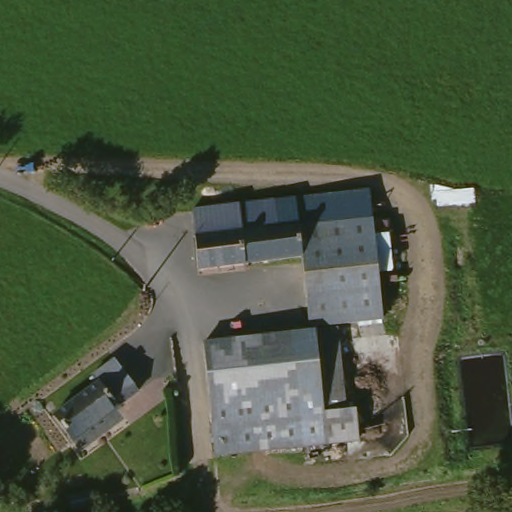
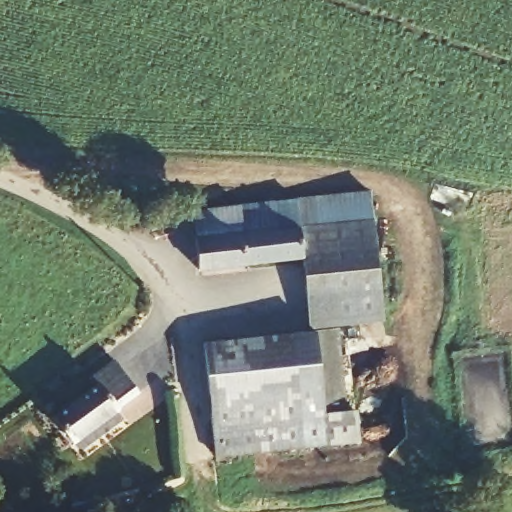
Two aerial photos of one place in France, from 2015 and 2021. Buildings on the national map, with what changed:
unchanged [(387,308),(387,325),(338,330),(345,411),(359,410),(360,444),(215,458),(204,342),(306,331),(301,259),(199,271),(190,214),(306,197),(308,224),(373,216),(375,225),(406,223),(411,307),(387,308)]
unchanged [(93,377),(116,360),(142,393),(119,411),(97,385),(93,377)]
unchanged [(119,411),(120,412),(76,445),(52,415),(81,395),(97,385),(119,411)]

